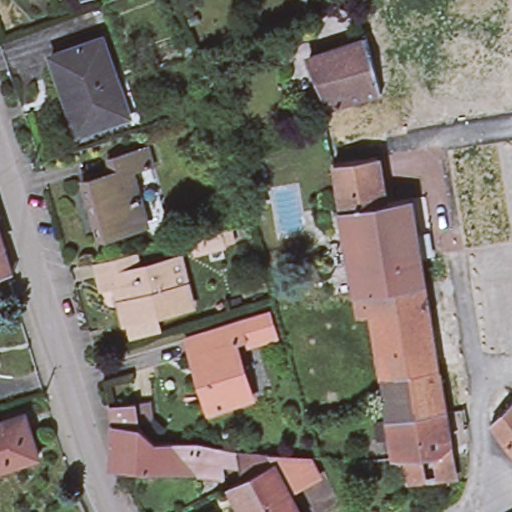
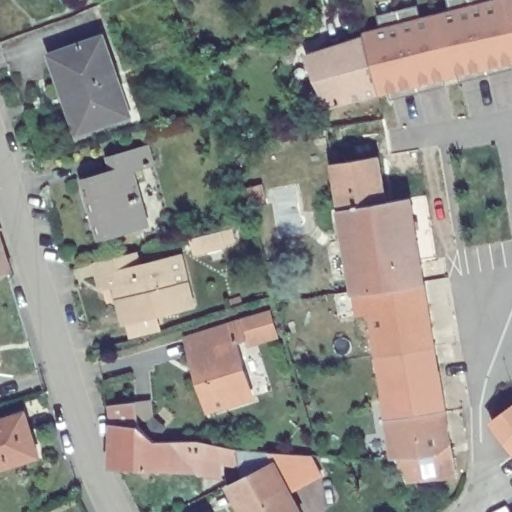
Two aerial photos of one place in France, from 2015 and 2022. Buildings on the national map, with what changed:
new [(366,37),(365,32),(494,0),(512,0),(512,65),(372,99),(357,39),(366,37)]
unchanged [(296,56),(321,49),(320,46),(336,42),(337,45),(357,39),(372,99),(320,112),(296,56)]
unchanged [(72,98),(62,101),(47,62),(97,44),(123,114),(125,121),(85,135),(82,127),(72,98)]
unchanged [(75,186),(93,180),(95,182),(106,178),(101,163),(137,153),(143,170),(125,175),(133,203),(128,205),(136,231),(92,244),(75,186)]
unchanged [(340,161),(383,157),(392,203),(347,208),(340,161)]
unchanged [(244,189),(260,185),(265,204),(249,208),(244,189)]
unchanged [(357,272),(355,272),(355,267),(357,267),(347,208),(392,203),(418,199),(430,284),(362,295),(357,272)]
unchanged [(195,241),(222,234),(225,248),(198,254),(195,241)]
unchanged [(7,275),(3,276),(0,278),(0,253),(7,275)]
unchanged [(117,323),(108,285),(95,289),(88,263),(128,254),(132,268),(161,260),(168,287),(180,284),(185,307),(149,316),(153,331),(125,337),(122,322),(117,323)]
unchanged [(377,315),(365,317),(362,295),(430,284),(450,413),(395,423),(377,315)]
unchanged [(178,338),(220,326),(230,324),(266,310),(275,340),(248,347),(245,336),(235,340),(233,340),(240,361),(250,396),(199,411),(182,355),(178,338)]
unchanged [(487,424),(511,400),(512,401),(512,457),(511,457),(487,424)]
unchanged [(103,430),(100,412),(127,410),(130,428),(145,448),(189,449),(210,454),(215,484),(171,479),(118,475),(102,475),(103,430)]
unchanged [(395,423),(450,413),(456,446),(440,458),(405,462),(403,462),(402,462),(395,423)]
unchanged [(15,414),(29,458),(0,468),(0,419),(15,414)]
unchanged [(405,462),(440,458),(456,446),(461,477),(414,485),(412,486),(410,477),(405,462)]
unchanged [(238,477),(228,457),(257,460),(278,497),(286,512),(258,512),(240,480),(238,477)]
unchanged [(257,460),(295,463),(307,481),(278,497),(257,460)]
unchanged [(240,480),(258,512),(228,512),(217,492),(240,480)]

